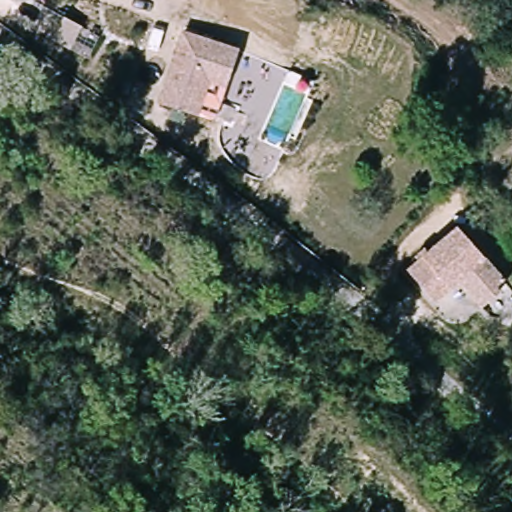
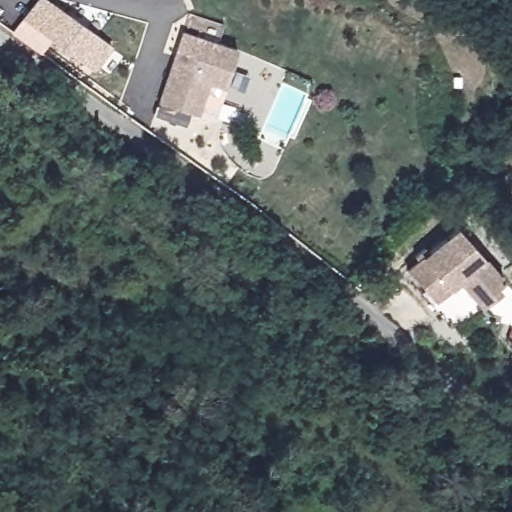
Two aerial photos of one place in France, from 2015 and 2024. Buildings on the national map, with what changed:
new [(44,54),(14,33),(23,19),(36,0),(48,0),(113,48),(95,73),(53,43),(44,54)]
demolished [(59,18),(77,27),(65,50),(47,41),(59,18)]
unchanged [(196,119),(158,106),(184,35),(239,54),(225,91),(213,125),(196,119)]
unchanged [(427,292),(410,273),(459,228),(507,279),(499,287),(503,291),(487,307),(462,281),(453,289),(438,303),(427,292)]

